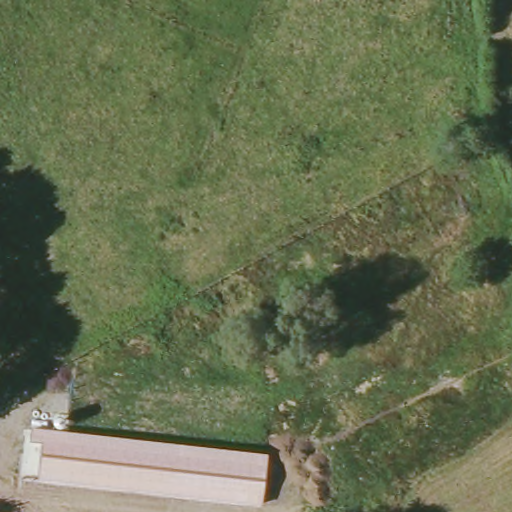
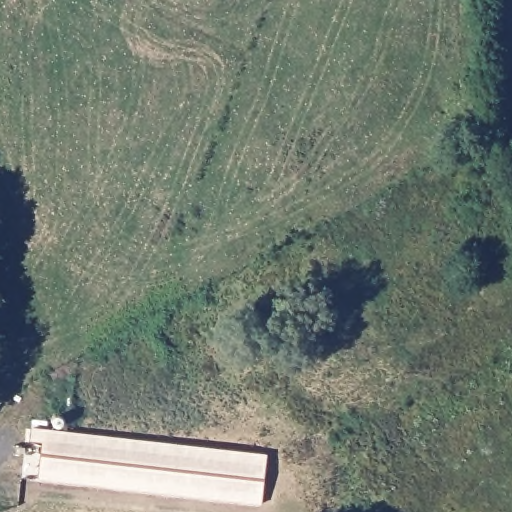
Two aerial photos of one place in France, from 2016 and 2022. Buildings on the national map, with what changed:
unchanged [(262,506),(38,480),(43,442),(29,440),(31,426),(267,454),(262,506)]

